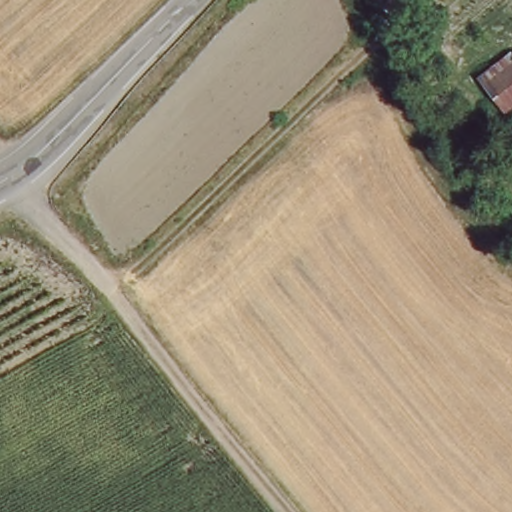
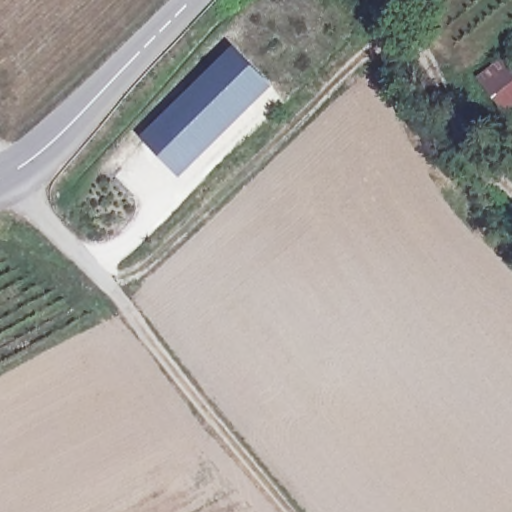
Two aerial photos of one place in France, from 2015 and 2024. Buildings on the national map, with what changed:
new [(231,43),(273,84),(179,177),(138,134),(231,43)]
unchanged [(482,78),(512,53),(512,106),(507,110),(482,78)]

